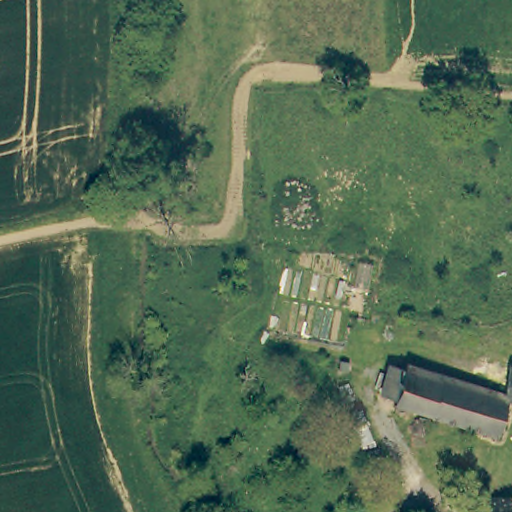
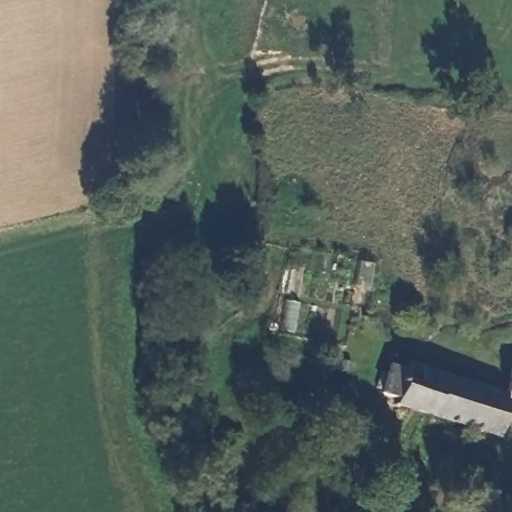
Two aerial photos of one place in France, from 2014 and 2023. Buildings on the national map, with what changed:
unchanged [(499,443),(394,411),(406,371),(508,399),(511,369),(512,369),(512,408),(499,443)]

